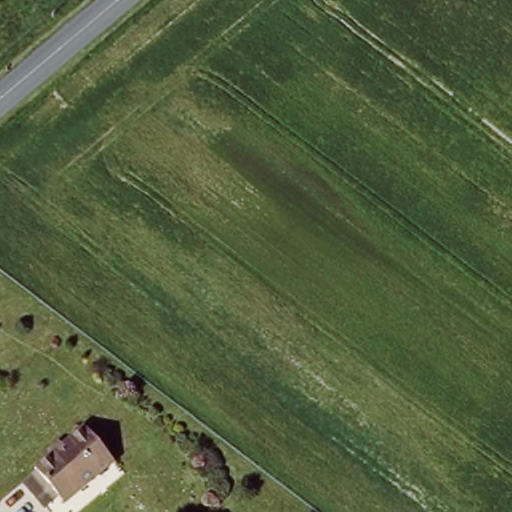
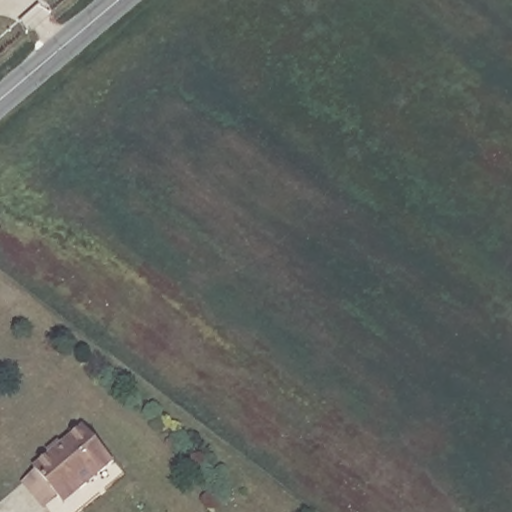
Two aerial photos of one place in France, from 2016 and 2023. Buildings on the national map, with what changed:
unchanged [(59,501),(36,472),(53,458),(46,452),(58,442),(63,448),(85,430),(115,466),(81,495),(66,508),(59,501)]

